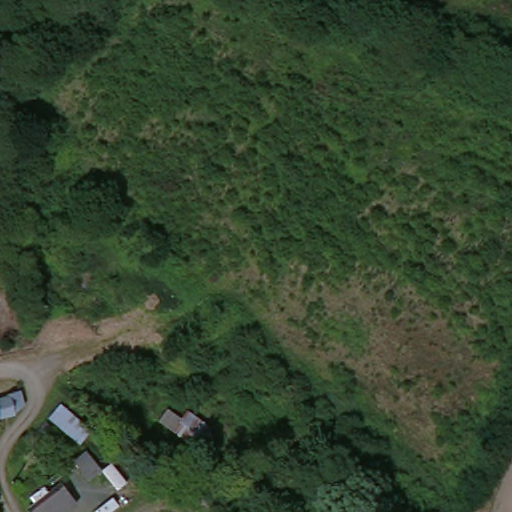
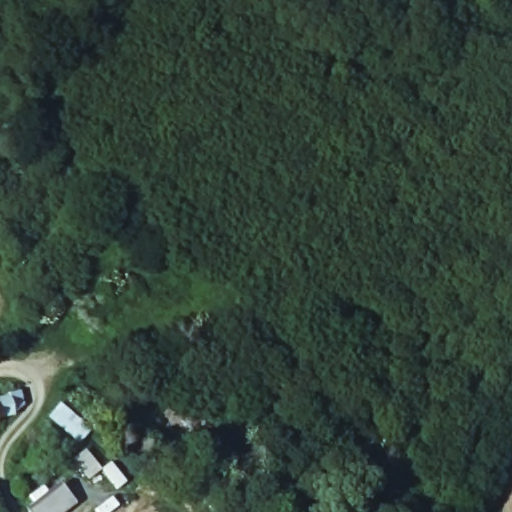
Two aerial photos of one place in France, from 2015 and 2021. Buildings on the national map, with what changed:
unchanged [(22,404),(16,407),(17,415),(0,419),(0,395),(17,390),(22,404)]
unchanged [(91,427),(76,442),(42,413),(57,398),(91,427)]
unchanged [(87,450),(102,468),(89,477),(75,458),(87,450)]
unchanged [(64,484),(77,502),(64,512),(29,512),(27,510),(64,484)]

